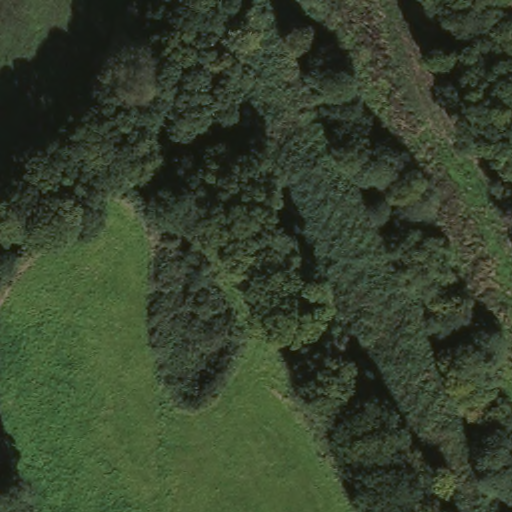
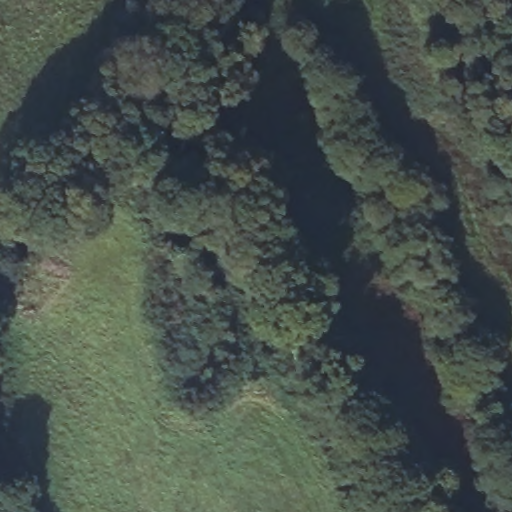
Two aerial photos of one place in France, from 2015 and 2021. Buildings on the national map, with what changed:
[]

